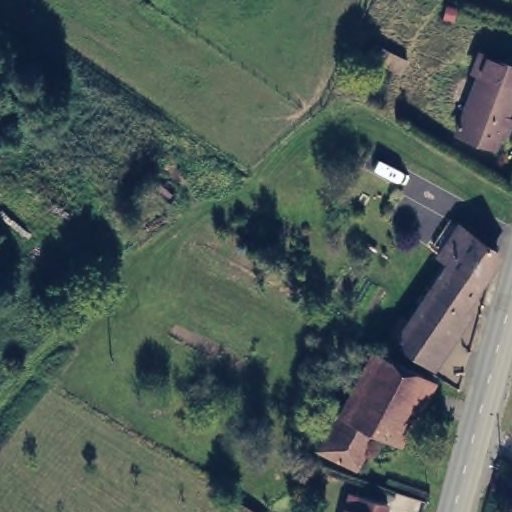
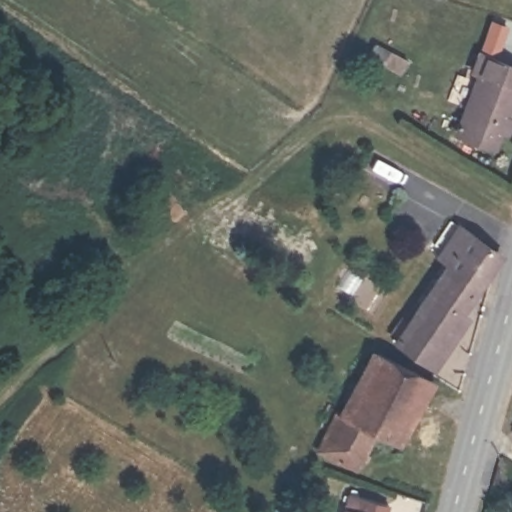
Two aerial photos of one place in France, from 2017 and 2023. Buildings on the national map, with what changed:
unchanged [(436,1),(432,0),(436,0),(436,1)]
unchanged [(483,72),(480,71),(487,54),(512,64),(512,110),(498,148),(463,133),(483,72)]
unchanged [(423,365),(392,343),(422,305),(470,236),(499,257),(496,267),(423,365)]
unchanged [(427,394),(392,449),(378,441),(358,474),(315,452),(321,444),(329,447),(342,425),(345,426),(382,366),(427,394)]

